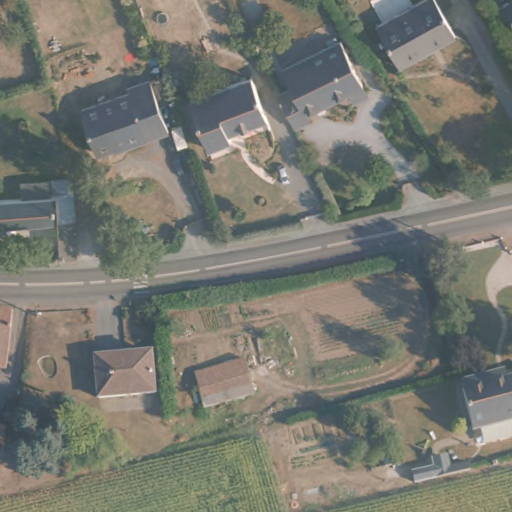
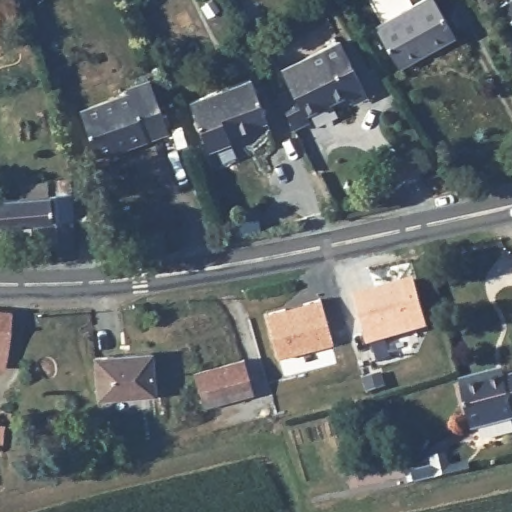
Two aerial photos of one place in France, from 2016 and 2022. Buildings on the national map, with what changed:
unchanged [(421,0),(432,0),(448,32),(395,62),(374,24),(421,0)]
unchanged [(512,20),(500,1),(502,0),(512,0),(512,20)]
unchanged [(359,95),(354,85),(310,105),(310,111),(296,119),(281,87),(297,80),(289,64),(344,36),(365,80),(369,90),(359,95)]
unchanged [(248,80),(262,116),(225,132),(228,139),(206,147),(190,100),(248,80)]
unchanged [(123,102),(121,95),(144,88),(161,139),(118,154),(116,148),(89,158),(76,119),(123,102)]
unchanged [(74,255),(58,255),(54,218),(0,223),(0,198),(17,196),(17,182),(67,177),(68,191),(71,216),(74,255)]
new [(352,292),(368,288),(369,290),(411,278),(425,328),(367,345),(352,292)]
new [(265,313),(319,299),(332,345),(277,360),(265,313)]
unchanged [(11,307),(5,365),(0,364),(0,306),(11,307)]
unchanged [(153,351),(154,375),(155,396),(102,398),(99,355),(153,351)]
unchanged [(246,363),(253,393),(204,406),(196,376),(246,363)]
unchanged [(463,387),(462,380),(504,371),(505,378),(512,377),(512,421),(473,430),(463,387)]
unchanged [(5,420),(3,440),(0,440),(0,419),(5,420)]
unchanged [(466,461),(467,470),(432,477),(432,471),(431,458),(445,456),(446,464),(466,461)]

